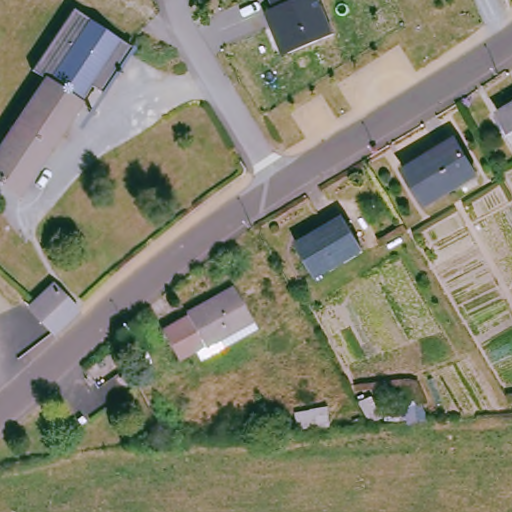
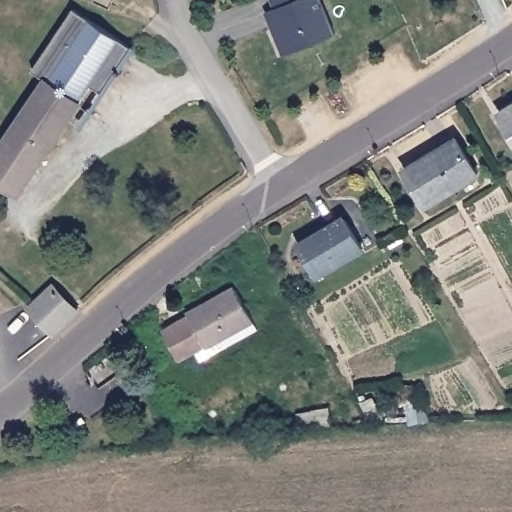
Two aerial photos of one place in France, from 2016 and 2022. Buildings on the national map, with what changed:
unchanged [(272,5),(270,0),(323,0),(335,31),(280,54),(263,9),(272,5)]
unchanged [(105,85),(94,78),(18,184),(0,167),(0,139),(43,77),(31,67),(61,24),(77,1),(98,16),(135,40),(105,85)]
unchanged [(497,109),(512,100),(512,134),(497,109)]
unchanged [(458,141),(477,178),(427,206),(407,171),(458,141)]
unchanged [(345,217),(360,244),(316,270),(300,242),(345,217)]
unchanged [(53,329),(32,304),(58,284),(78,309),(53,329)]
unchanged [(234,289),(250,319),(203,347),(201,343),(175,359),(160,334),(234,289)]
unchanged [(125,374),(127,381),(120,385),(117,377),(125,374)]
unchanged [(330,427),(295,428),(292,408),(326,404),(330,427)]

